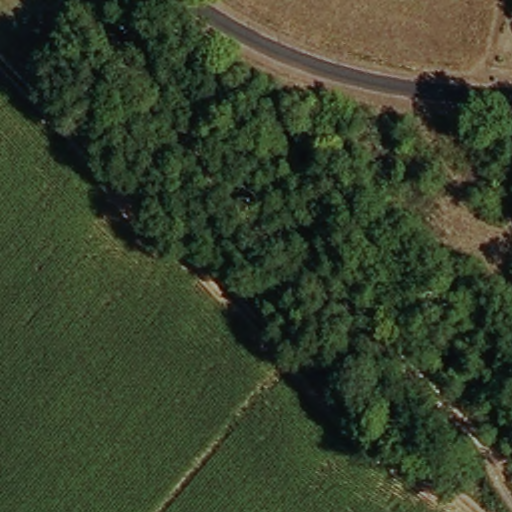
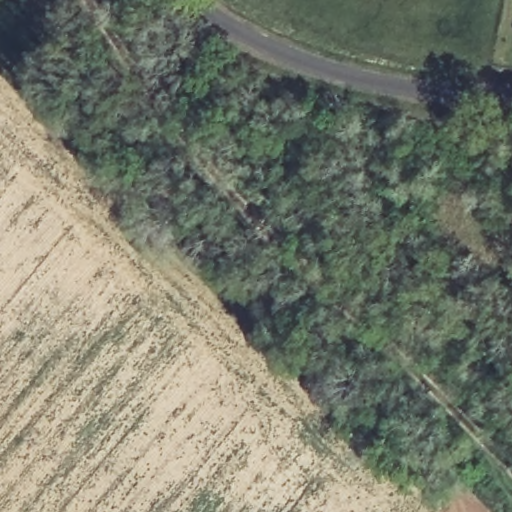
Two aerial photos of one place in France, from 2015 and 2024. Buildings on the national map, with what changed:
unchanged [(123,165),(136,152),(149,166),(135,178),(123,165)]

